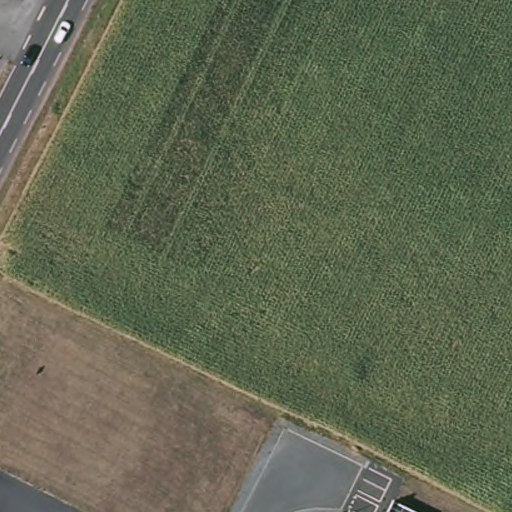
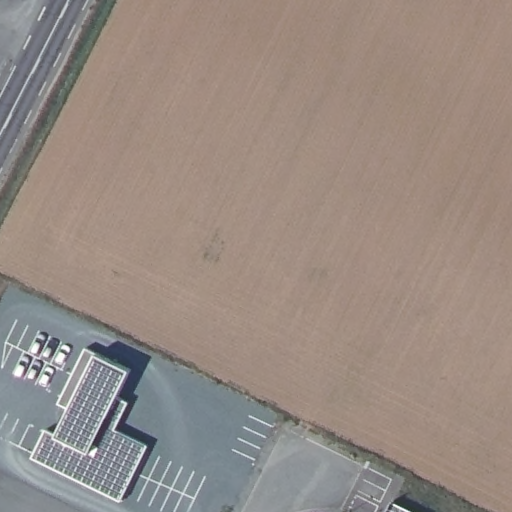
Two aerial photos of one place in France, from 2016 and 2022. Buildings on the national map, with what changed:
new [(53,426),(64,431),(78,404),(66,399),(94,344),(136,367),(123,394),(134,399),(120,427),(153,443),(126,497),(39,453),(53,426)]
new [(398,501),(422,512),(392,512),(398,501)]

